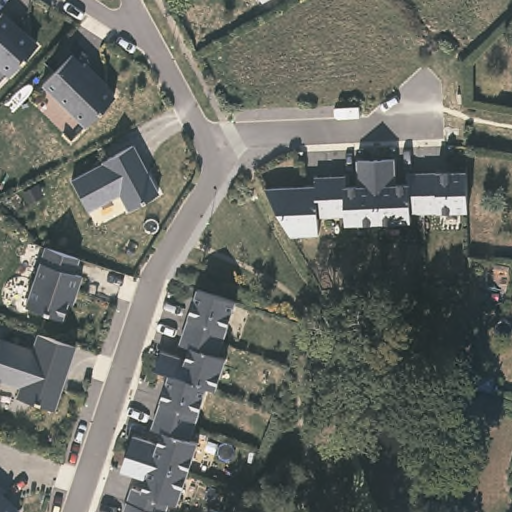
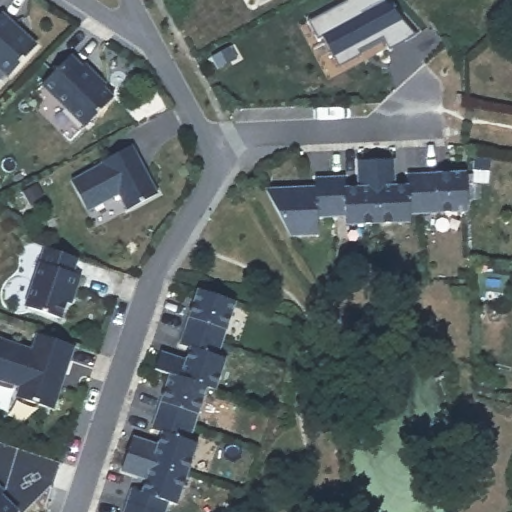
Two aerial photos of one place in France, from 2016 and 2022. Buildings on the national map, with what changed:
new [(347,0),(387,0),(417,35),(392,48),(385,36),(359,49),(362,54),(340,66),(322,36),(318,38),(309,21),(347,0)]
unchanged [(13,26),(11,28),(34,48),(6,79),(0,74),(0,15),(0,14),(13,26)]
unchanged [(69,57),(81,68),(83,65),(95,78),(93,80),(112,99),(82,129),(40,87),(69,57)]
unchanged [(131,142),(158,193),(129,211),(121,196),(87,212),(71,180),(131,142)]
unchanged [(264,185),(314,183),(314,174),(343,172),(343,183),(357,183),(356,156),(392,154),(393,181),(406,180),(406,169),(464,166),(465,190),(466,205),(408,208),(409,216),(344,220),(344,211),(316,213),(317,230),(303,231),(292,231),(290,231),(272,200),(264,185)]
unchanged [(79,255),(78,267),(82,270),(74,305),(69,303),(65,317),(20,306),(42,248),(79,255)]
unchanged [(232,302),(214,356),(222,359),(212,389),(204,386),(186,440),(194,443),(174,504),(165,501),(162,512),(121,512),(128,488),(139,492),(143,479),(118,471),(130,436),(155,445),(159,432),(149,428),(167,374),(152,369),(158,352),(183,360),(187,347),(177,344),(195,289),(206,293),(232,302)]
unchanged [(20,386),(0,378),(0,340),(34,350),(38,334),(72,345),(52,408),(16,396),(20,386)]
unchanged [(14,512),(0,512),(0,493),(16,509),(14,512)]

